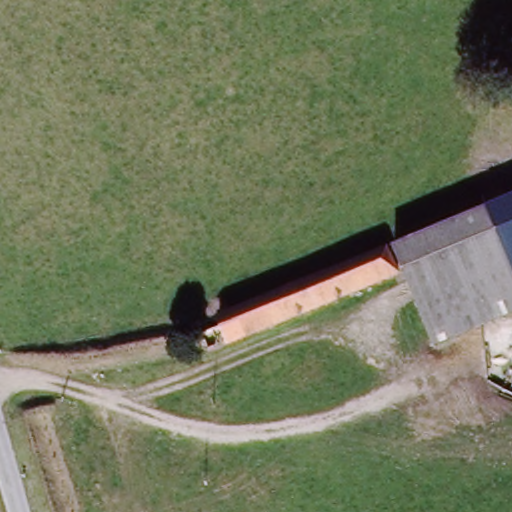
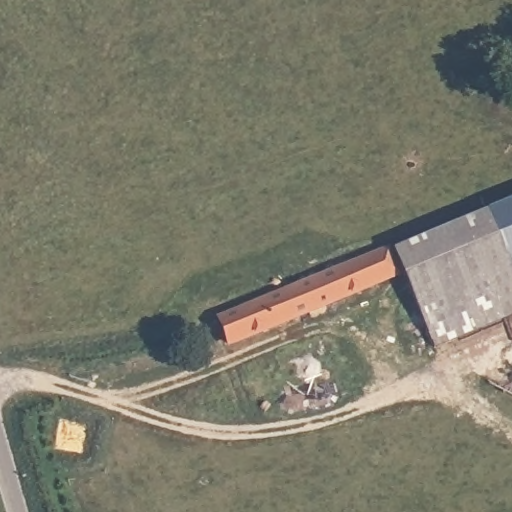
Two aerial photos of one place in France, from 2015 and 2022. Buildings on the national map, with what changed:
unchanged [(489,210),(512,201),(512,272),(489,210)]
unchanged [(512,271),(512,319),(434,349),(395,248),(489,210),(512,271)]
unchanged [(210,353),(201,329),(217,323),(215,315),(387,247),(400,278),(210,353)]

